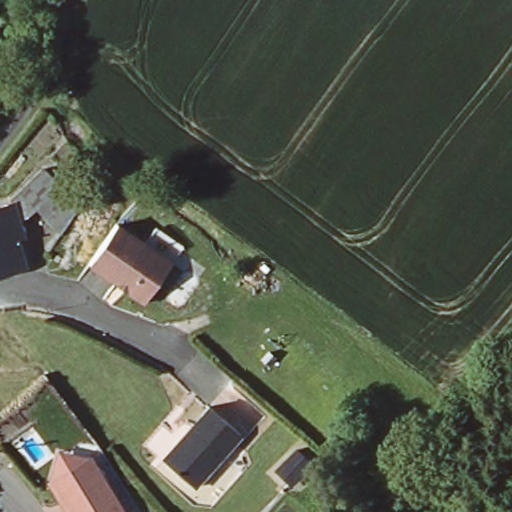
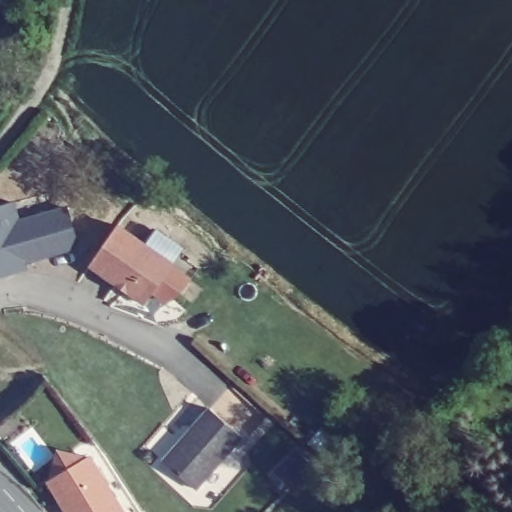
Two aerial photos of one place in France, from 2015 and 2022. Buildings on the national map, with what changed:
demolished [(10,194),(38,164),(55,181),(18,221),(11,198),(10,194)]
demolished [(18,221),(18,223),(19,234),(14,237),(21,265),(0,270),(0,202),(11,198),(18,221)]
new [(21,218),(67,205),(79,248),(25,262),(26,270),(0,277),(0,206),(16,201),(21,218)]
unchanged [(88,265),(116,225),(143,244),(153,231),(180,250),(171,263),(143,303),(124,290),(115,284),(88,265)]
unchanged [(203,404),(234,432),(188,483),(158,456),(203,404)]
unchanged [(85,451),(121,512),(69,512),(61,498),(46,474),(85,451)]
unchanged [(276,471),(296,451),(309,465),(289,485),(276,471)]

